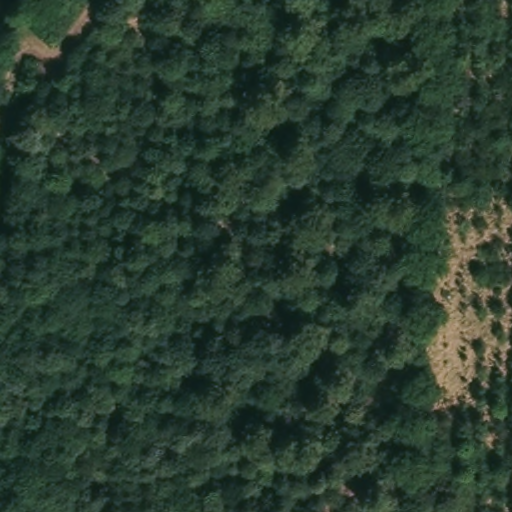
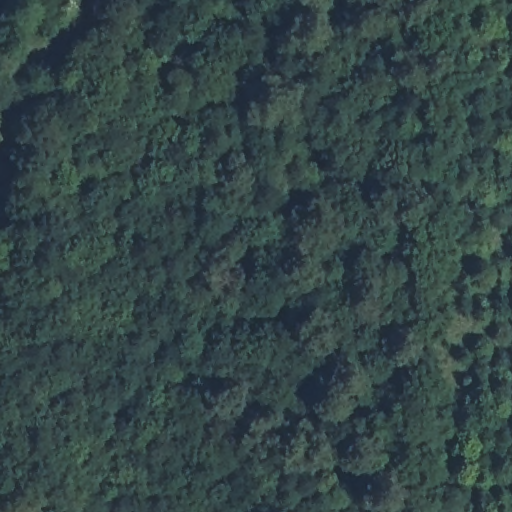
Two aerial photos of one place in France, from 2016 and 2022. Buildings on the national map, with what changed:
[]

